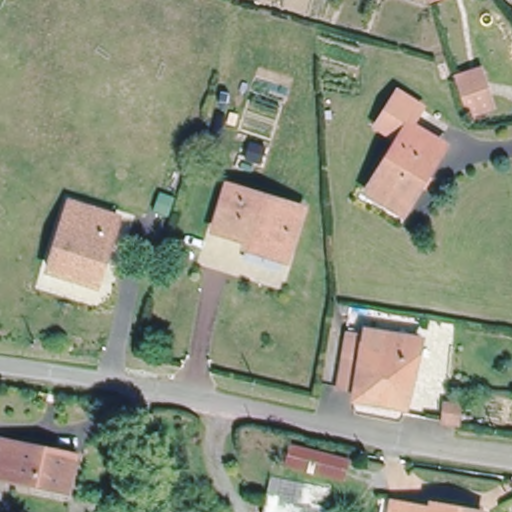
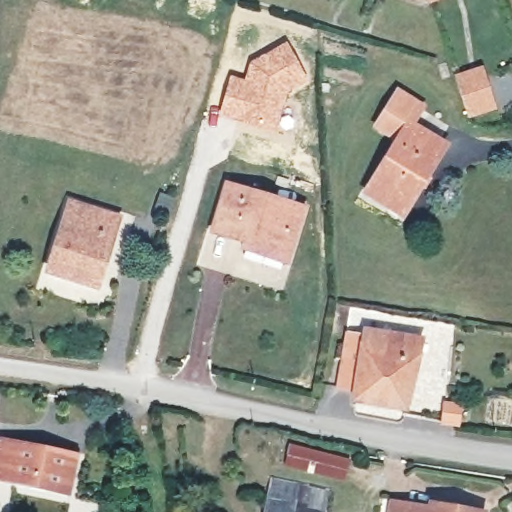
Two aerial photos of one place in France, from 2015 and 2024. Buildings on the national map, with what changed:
new [(228,74),(243,78),(249,60),(286,40),(308,81),(291,90),(286,95),(275,131),(217,116),(228,74)]
unchanged [(455,79),(479,71),(492,108),(468,116),(455,79)]
unchanged [(404,139),(382,126),(404,93),(424,106),(412,125),(448,146),(408,213),(373,192),(404,139)]
unchanged [(245,249),(247,241),(214,230),(228,186),(303,209),(288,255),(285,262),(245,249)]
unchanged [(70,203),(118,218),(97,284),(49,270),(70,203)]
unchanged [(372,327),(424,336),(409,402),(361,394),(372,327)]
unchanged [(446,407),(459,408),(457,425),(444,423),(446,407)]
unchanged [(1,441),(75,457),(67,493),(0,478),(0,445),(1,441)]
unchanged [(290,445),(349,461),(344,481),(285,466),(290,445)]
unchanged [(286,477),(344,489),(340,512),(279,512),(286,477)]
unchanged [(430,512),(392,512),(393,506),(430,512)]
unchanged [(432,506),(456,510),(467,512),(431,512),(432,506)]

